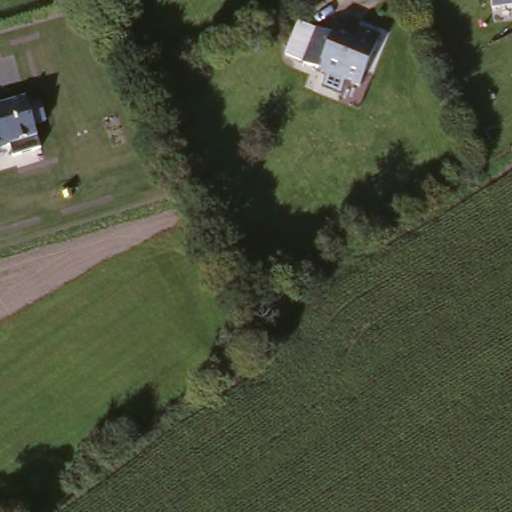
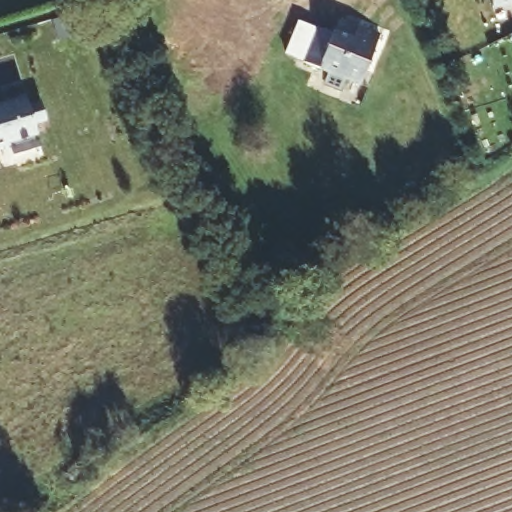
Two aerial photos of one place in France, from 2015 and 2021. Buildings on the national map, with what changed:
unchanged [(492,0),(512,0),(512,4),(493,7),(492,0)]
unchanged [(352,48),(357,35),(379,42),(359,96),(346,91),(342,101),(327,95),(331,85),(301,75),(316,35),(352,48)]
unchanged [(14,156),(11,145),(0,148),(0,107),(39,96),(47,123),(36,126),(41,145),(14,156)]

